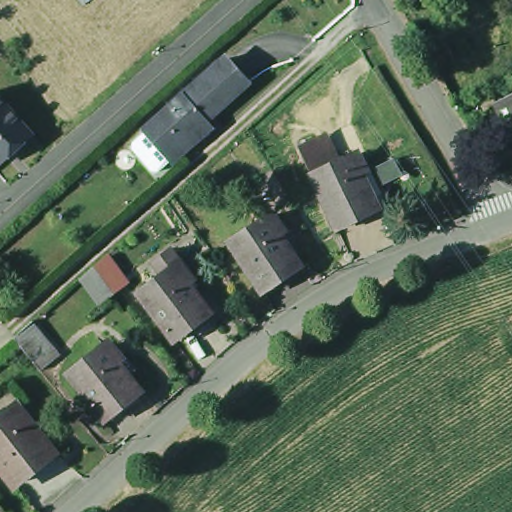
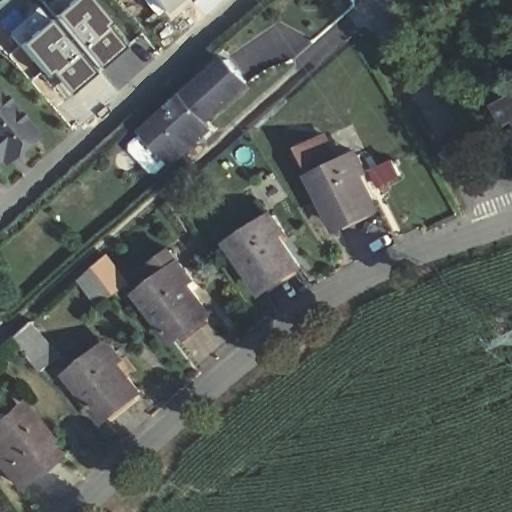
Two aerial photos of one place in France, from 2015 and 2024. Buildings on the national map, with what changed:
new [(112,52),(95,35),(77,52),(47,21),(69,0),(87,0),(124,41),(112,52)]
new [(154,0),(185,0),(167,16),(154,0)]
new [(190,0),(195,0),(192,3),(190,0)]
new [(96,75),(67,100),(19,42),(47,21),(77,52),(96,75)]
unchanged [(167,166),(140,128),(222,56),(248,86),(167,166)]
unchanged [(0,161),(0,98),(31,133),(0,161)]
unchanged [(505,129),(509,126),(499,111),(512,102),(512,140),(505,129)]
unchanged [(364,172),(358,175),(374,207),(333,227),(309,176),(295,148),(312,140),(322,135),(337,164),(355,154),(364,172)]
unchanged [(280,236),(275,240),(295,269),(258,295),(225,250),(269,221),(280,236)]
unchanged [(117,247),(141,282),(105,314),(82,280),(117,247)]
unchanged [(184,283),(205,312),(169,338),(136,295),(162,276),(152,263),(169,250),(179,263),(190,278),(184,283)]
unchanged [(20,337),(35,323),(56,348),(40,362),(20,337)]
unchanged [(116,342),(128,358),(124,362),(146,390),(110,417),(75,375),(116,342)]
unchanged [(55,455),(15,486),(0,466),(0,422),(18,408),(55,455)]

